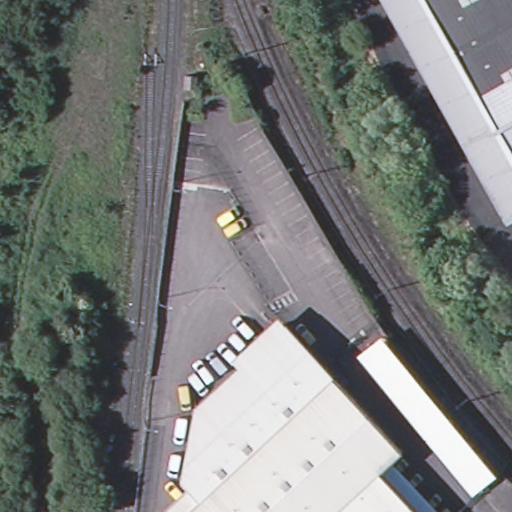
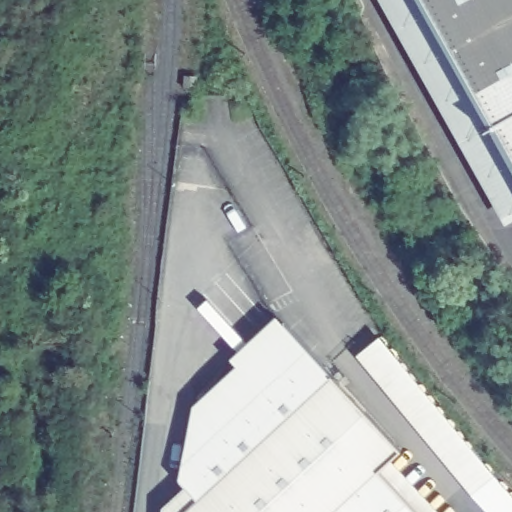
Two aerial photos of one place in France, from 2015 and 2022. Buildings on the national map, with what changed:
unchanged [(479,87),(429,0),(512,0),(512,146),(479,87)]
unchanged [(191,504),(174,485),(194,408),(284,327),(331,378),(191,504)]
unchanged [(191,504),(331,378),(400,453),(377,474),(412,512),(183,512),(191,504)]

